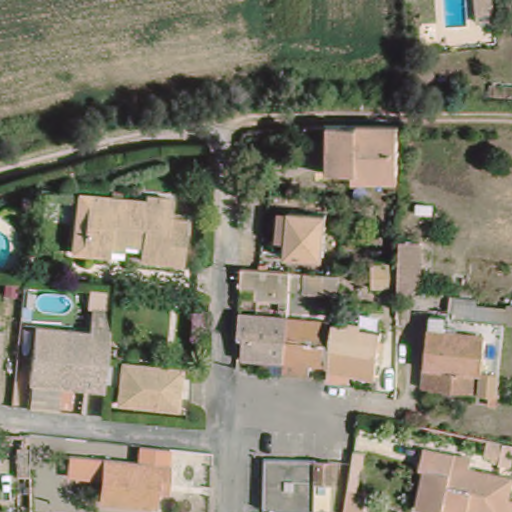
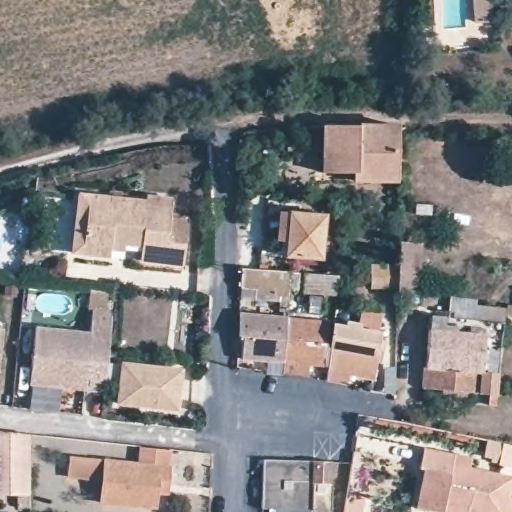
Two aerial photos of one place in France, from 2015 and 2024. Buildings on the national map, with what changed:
unchanged [(488,0),(490,23),(473,24),(472,0),(488,0)]
unchanged [(348,185),(348,175),(318,176),(318,125),(393,126),(393,175),(393,186),(348,185)]
unchanged [(141,258),(142,242),(125,241),(125,249),(112,247),(110,254),(83,251),(71,250),(78,189),(89,190),(145,196),(146,192),(172,195),(171,216),(189,217),(185,247),(183,263),(141,258)]
unchanged [(276,242),(277,214),(289,214),(326,216),(322,260),(285,258),(287,243),(276,242)]
unchanged [(400,261),(400,240),(421,240),(419,290),(397,290),(398,285),(370,286),(371,261),(400,261)]
unchanged [(256,301),(256,290),(240,289),(242,269),(260,270),(259,265),(268,267),(267,270),(292,272),(290,303),(256,301)]
unchanged [(336,266),(355,267),(354,277),(338,277),(335,276),(336,266)]
unchanged [(335,276),(335,293),(304,292),(305,274),(335,276)]
unchanged [(471,306),(472,312),(512,317),(512,331),(499,329),(443,325),(443,317),(445,304),(471,306)]
unchanged [(28,407),(30,387),(35,328),(90,333),(91,330),(94,310),(113,311),(111,332),(105,395),(85,392),(60,390),(58,410),(28,407)]
unchanged [(239,331),(235,331),(235,311),(284,315),(278,360),(237,355),(239,331)]
unchanged [(303,372),(276,370),(278,360),(284,315),(325,318),(320,362),(303,361),(303,372)]
unchanged [(379,330),(369,376),(323,367),(328,320),(340,322),(342,317),(356,321),(356,325),(379,330)]
unchanged [(421,377),(425,323),(443,325),(499,329),(495,357),(480,356),(478,382),(421,377)]
unchanged [(3,330),(0,358),(0,330),(3,330)]
unchanged [(421,377),(478,382),(480,356),(495,357),(492,412),(483,411),(484,400),(419,395),(421,377)]
unchanged [(183,412),(122,406),(127,365),(187,371),(183,412)]
new [(28,437),(28,493),(0,493),(0,434),(28,437)]
unchanged [(156,493),(155,510),(102,503),(104,483),(80,480),(83,458),(65,457),(65,439),(86,442),(86,458),(140,465),(141,447),(172,451),(170,480),(168,495),(156,493)]
demolished [(42,447),(41,465),(30,465),(30,445),(42,447)]
unchanged [(503,445),(512,446),(512,467),(511,469),(498,467),(503,445)]
unchanged [(416,509),(424,470),(419,469),(423,450),(455,457),(471,459),(470,470),(512,477),(512,489),(510,500),(512,500),(512,512),(431,512),(416,509)]
unchanged [(263,466),(313,467),(332,467),(330,491),(312,491),(312,512),(263,512),(263,466)]
unchanged [(345,489),(363,492),(360,512),(342,512),(345,489)]

